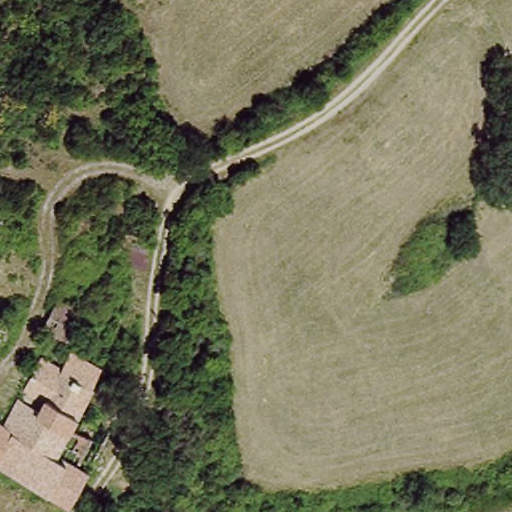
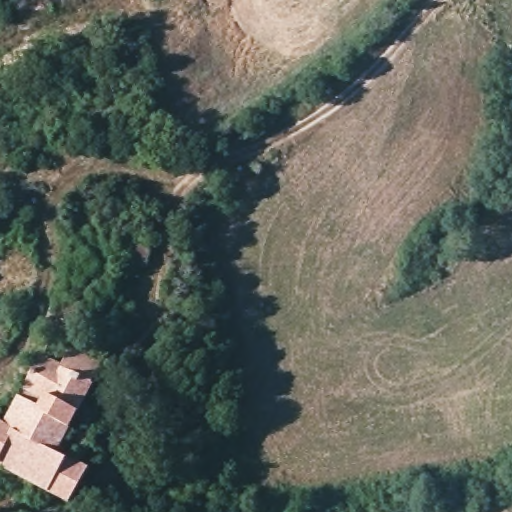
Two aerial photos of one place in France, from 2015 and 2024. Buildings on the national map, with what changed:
unchanged [(148,235),(144,265),(120,258),(126,230),(148,235)]
unchanged [(65,344),(39,332),(55,303),(78,315),(65,344)]
unchanged [(0,469),(0,422),(3,424),(11,416),(24,385),(19,381),(23,371),(38,364),(58,371),(69,356),(100,372),(71,431),(79,435),(83,425),(99,432),(80,468),(90,471),(70,506),(0,469)]

